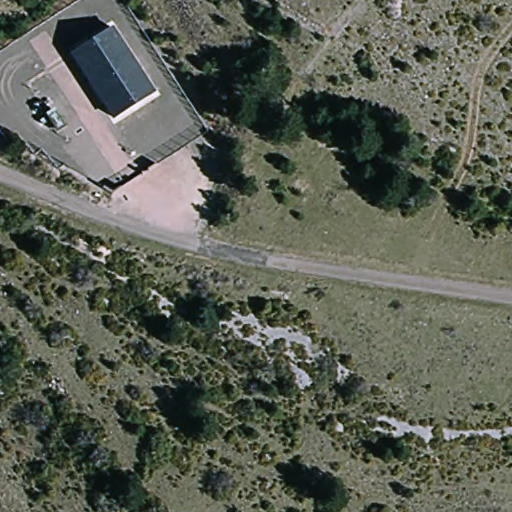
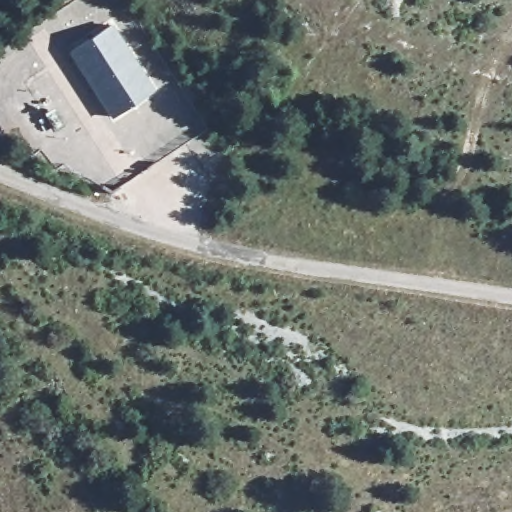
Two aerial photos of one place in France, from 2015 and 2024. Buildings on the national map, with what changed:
unchanged [(113,119),(72,53),(111,25),(156,92),(113,119)]

